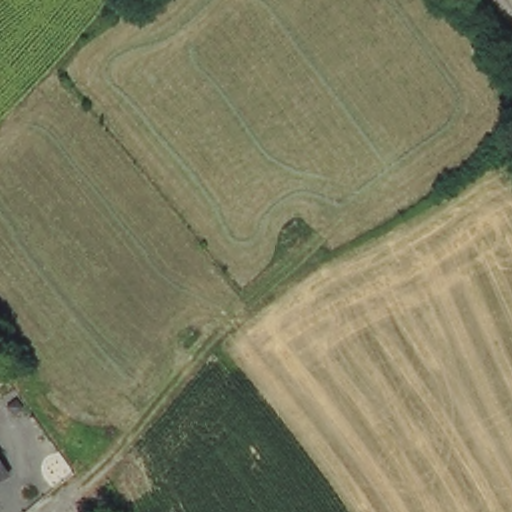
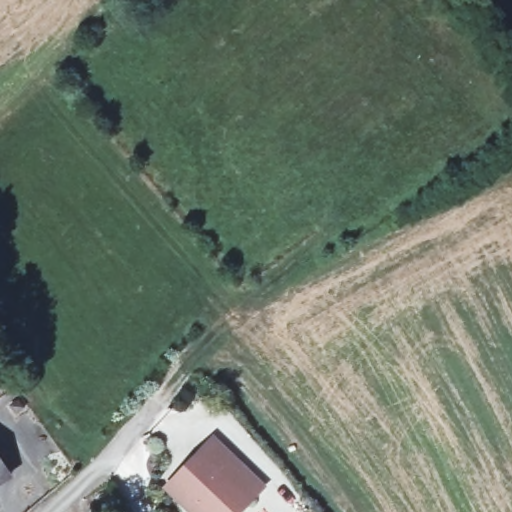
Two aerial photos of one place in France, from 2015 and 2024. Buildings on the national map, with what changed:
new [(188,512),(162,488),(211,434),(265,486),(240,512),(188,512)]
unchanged [(12,476),(0,484),(0,459),(12,476)]

